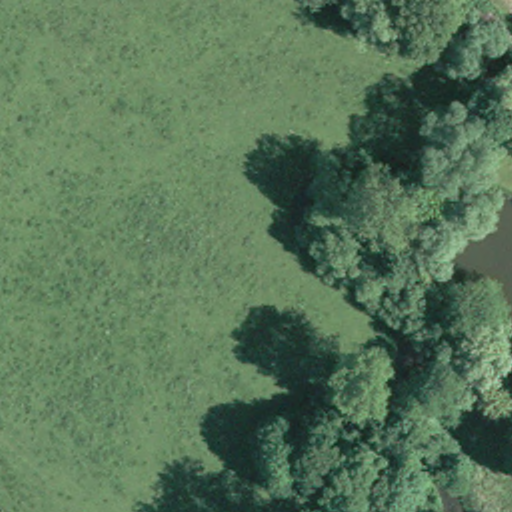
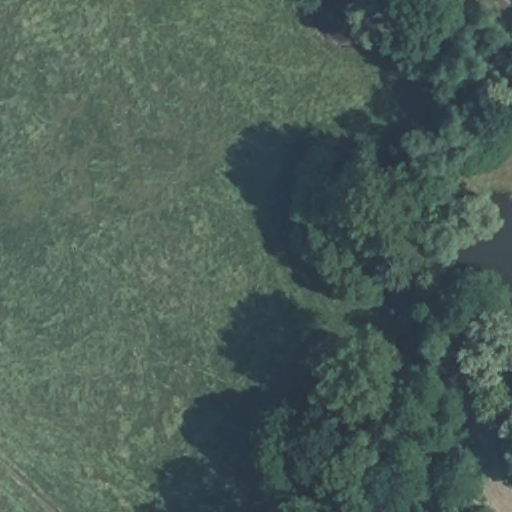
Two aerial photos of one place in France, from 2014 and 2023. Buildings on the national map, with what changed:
unchanged [(407,242),(392,252),(369,222),(384,211),(407,242)]

